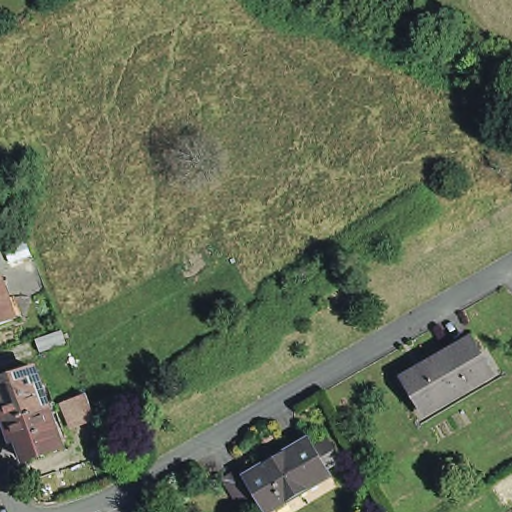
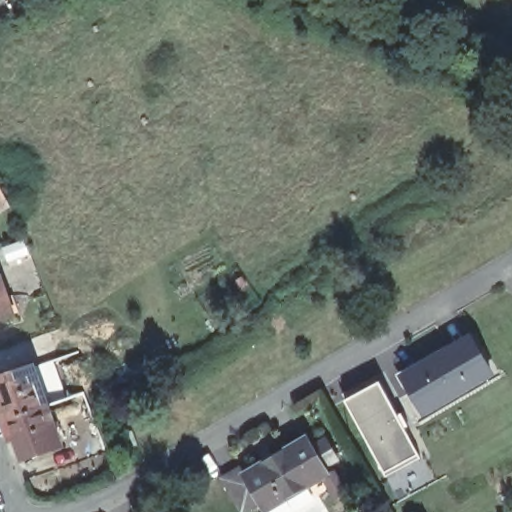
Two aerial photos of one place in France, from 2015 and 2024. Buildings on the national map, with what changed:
unchanged [(0,208),(0,184),(10,203),(0,208)]
unchanged [(0,274),(14,313),(0,318),(0,274)]
unchanged [(50,345),(30,351),(26,338),(44,331),(50,345)]
unchanged [(394,372),(462,332),(484,370),(416,410),(394,372)]
unchanged [(0,397),(3,397),(0,390),(0,376),(34,365),(48,402),(30,408),(4,417),(0,405),(0,397)]
unchanged [(56,400),(74,392),(65,370),(75,366),(84,390),(93,413),(84,417),(66,424),(56,400)]
new [(426,459),(391,479),(354,402),(387,384),(426,459)]
unchanged [(30,408),(48,402),(61,443),(23,457),(16,437),(11,439),(4,417),(30,408)]
unchanged [(322,444),(333,462),(319,470),(323,475),(262,512),(258,512),(236,477),(300,437),(309,452),(322,444)]

